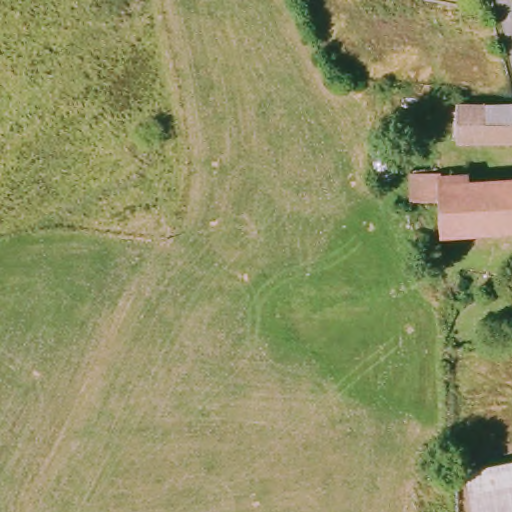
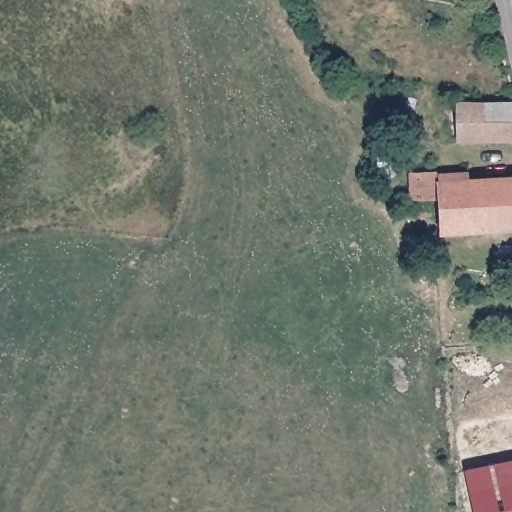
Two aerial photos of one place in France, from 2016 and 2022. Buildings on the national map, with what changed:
unchanged [(507,103),(506,139),(450,141),(450,105),(507,103)]
unchanged [(435,233),(435,200),(408,201),(408,174),(440,173),(439,186),(512,185),(512,231),(435,233)]
unchanged [(512,457),(512,512),(469,512),(460,467),(512,457)]

